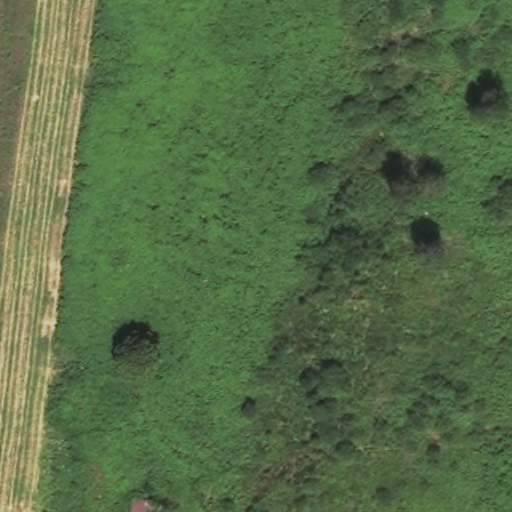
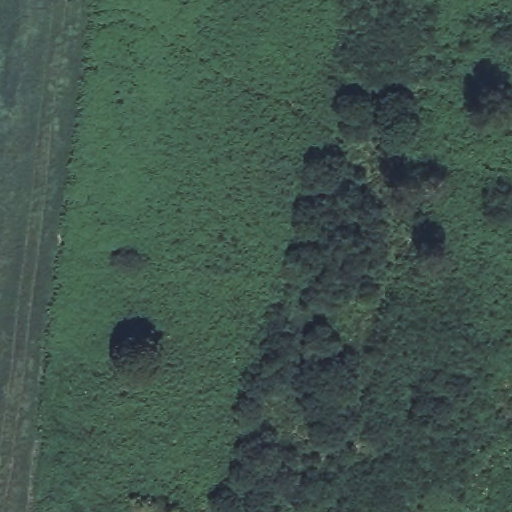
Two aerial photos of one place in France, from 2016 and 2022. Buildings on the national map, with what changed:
unchanged [(180,496),(179,512),(129,512),(129,497),(180,496)]

